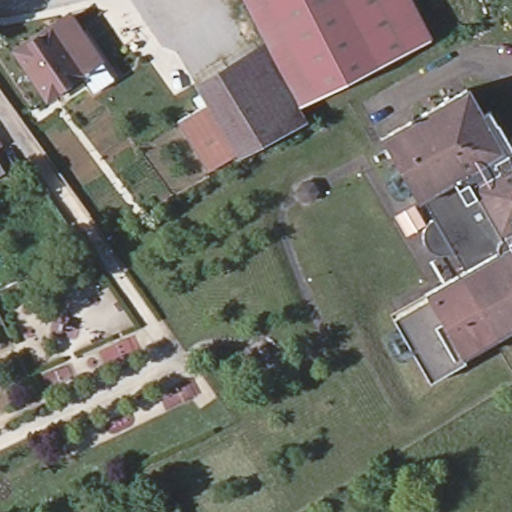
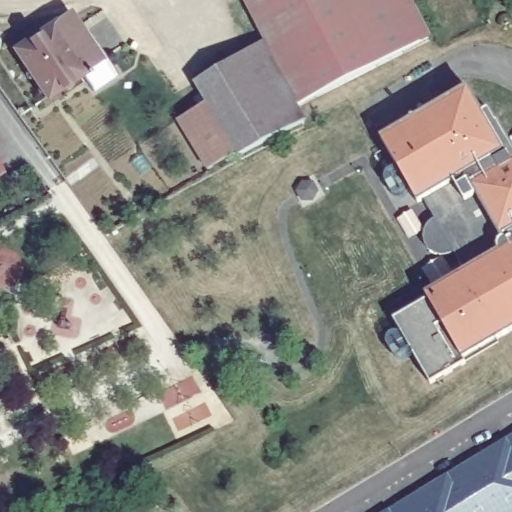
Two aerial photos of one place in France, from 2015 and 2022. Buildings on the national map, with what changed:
unchanged [(428,31),(298,101),(264,39),(244,0),(412,0),(428,31)]
unchanged [(13,48),(53,20),(59,15),(74,34),(78,30),(98,57),(79,70),(45,95),(13,48)]
unchanged [(238,147),(206,97),(196,79),(264,39),(298,101),(306,117),(241,152),(238,147)]
unchanged [(394,160),(379,132),(466,85),(480,110),(487,106),(512,152),(512,215),(484,232),(454,178),(424,194),(414,200),(409,188),(392,197),(376,169),(394,160)]
unchanged [(206,97),(238,147),(206,165),(175,115),(206,97)]
unchanged [(1,165),(0,166),(0,163),(1,165)]
unchanged [(454,178),(484,232),(494,250),(467,264),(455,249),(447,253),(433,250),(426,238),(428,224),(436,217),(424,194),(454,178)]
unchanged [(512,324),(456,355),(420,290),(467,264),(494,250),(484,232),(512,215),(512,324)]
unchanged [(456,355),(421,376),(387,308),(420,290),(456,355)]
new [(512,512),(386,512),(512,436),(512,512)]

